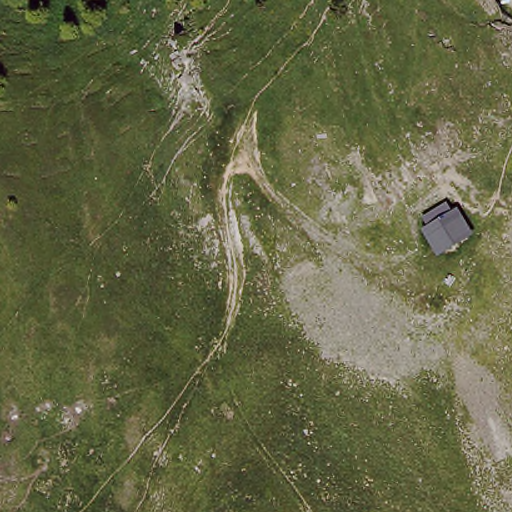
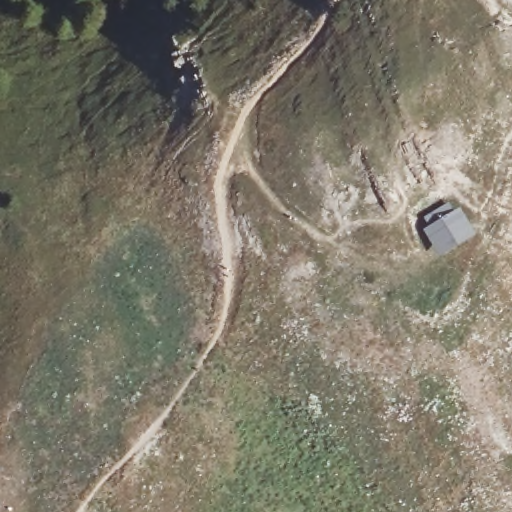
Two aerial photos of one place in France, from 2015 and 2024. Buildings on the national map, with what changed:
unchanged [(442,256),(420,229),(453,202),(474,231),(442,256)]

